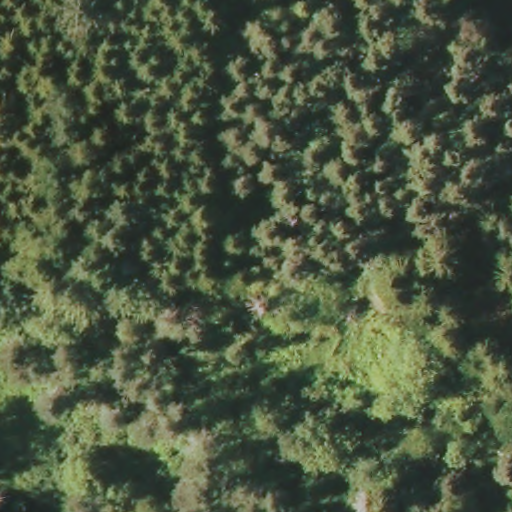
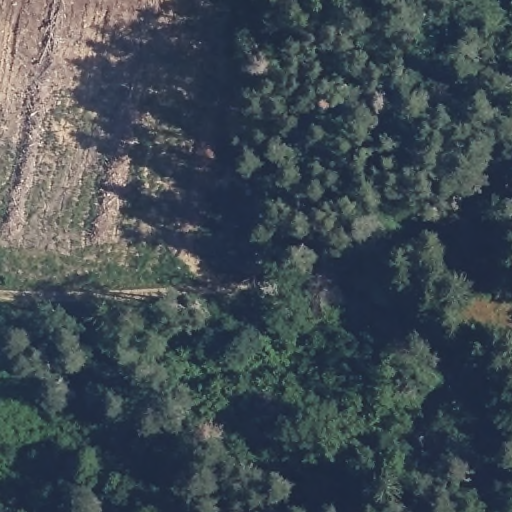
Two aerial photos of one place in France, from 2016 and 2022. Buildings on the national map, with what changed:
[]

